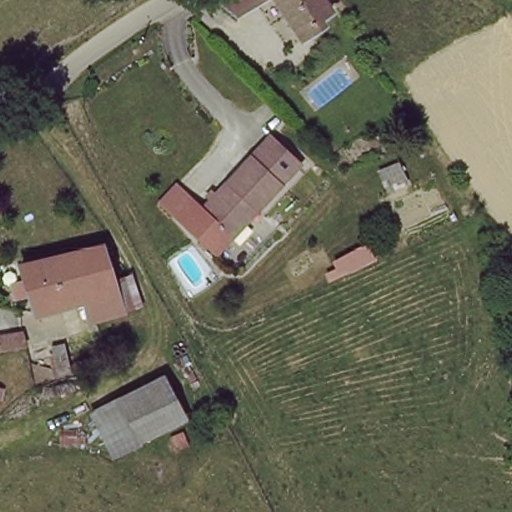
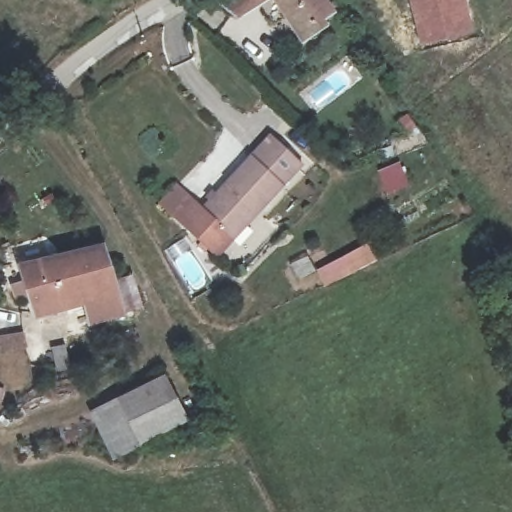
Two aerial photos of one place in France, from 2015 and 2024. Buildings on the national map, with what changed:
unchanged [(221,0),(254,0),(234,13),(221,0)]
unchanged [(334,25),(308,40),(299,28),(283,0),(327,0),(333,9),(326,15),(334,25)]
new [(419,46),(408,0),(467,0),(476,33),(419,46)]
unchanged [(300,160),(236,242),(201,213),(266,133),(300,160)]
unchanged [(201,213),(236,242),(218,260),(158,204),(178,183),(204,209),(201,213)]
unchanged [(125,309),(93,317),(88,295),(33,309),(31,301),(14,304),(11,287),(24,284),(21,264),(105,242),(125,309)]
unchanged [(53,362),(50,343),(67,339),(69,359),(53,362)]
unchanged [(163,378),(186,426),(111,462),(87,413),(163,378)]

